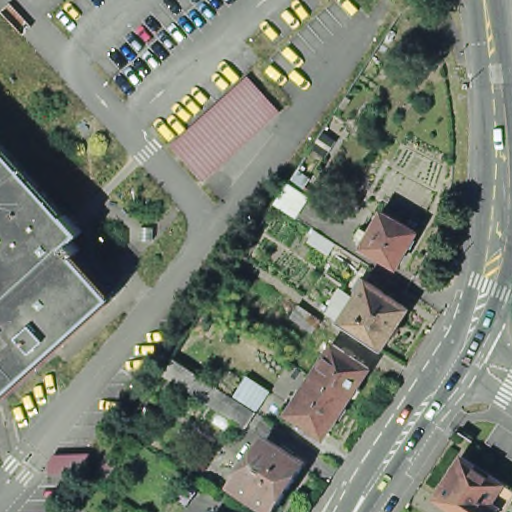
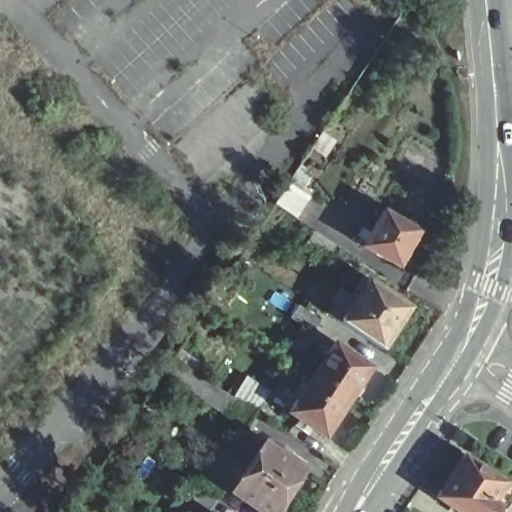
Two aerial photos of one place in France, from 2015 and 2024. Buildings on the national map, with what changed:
demolished [(204,181),(170,142),(185,127),(247,70),(281,112),(232,156),(204,181)]
demolished [(0,141),(82,232),(72,241),(80,250),(75,255),(111,296),(0,396),(0,141)]
unchanged [(294,217),(287,212),(283,209),(282,209),(275,204),(288,183),(308,195),(294,217)]
unchanged [(365,252),(386,216),(423,237),(403,272),(365,252)]
unchanged [(331,307),(345,315),(360,292),(355,288),(362,277),(409,307),(381,349),(340,322),(327,313),(331,307)]
unchanged [(298,306),(320,320),(311,332),(290,317),(298,306)]
unchanged [(210,322),(201,335),(192,329),(201,316),(210,322)]
unchanged [(334,344),(370,367),(358,384),(360,385),(361,390),(357,396),(351,397),(351,396),(347,402),(311,378),(334,344)]
unchanged [(256,413),(246,427),(163,373),(173,358),(256,413)]
unchanged [(347,402),(325,436),(305,424),(302,430),(295,425),(299,420),(288,413),(302,392),(298,388),(302,382),(306,386),(311,378),(347,402)]
unchanged [(260,512),(231,492),(265,442),(280,452),(285,446),(291,451),(287,457),(303,468),(274,512),(260,512)]
unchanged [(463,512),(440,497),(468,455),(512,484),(512,507),(510,511),(505,508),(502,512),(463,512)]

